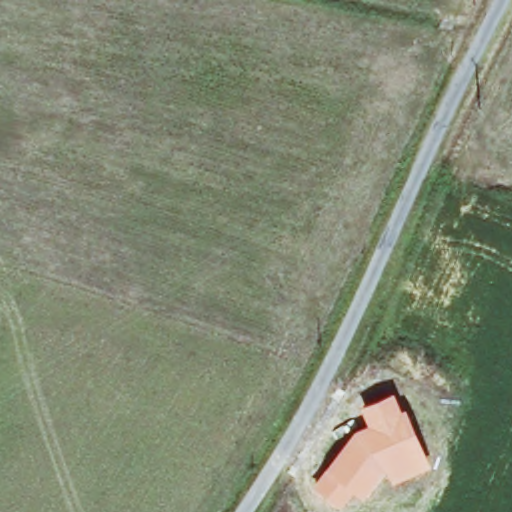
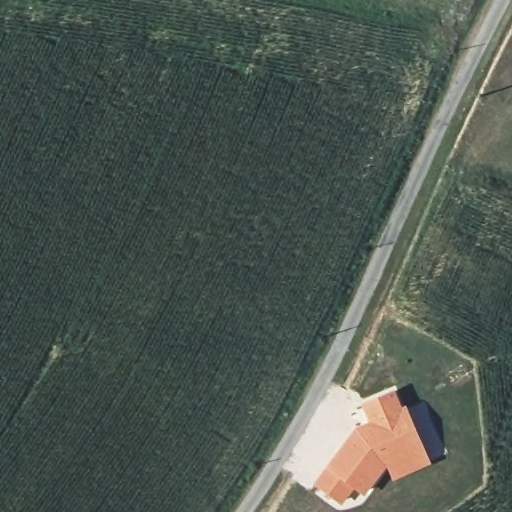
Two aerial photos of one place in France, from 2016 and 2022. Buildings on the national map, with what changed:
unchanged [(403,408),(408,406),(434,466),(394,482),(386,468),(365,500),(352,491),(343,505),(314,484),(352,430),(368,423),(362,406),(395,390),(403,408)]

